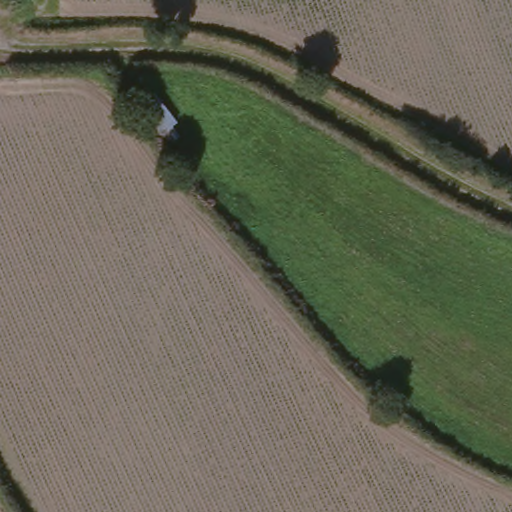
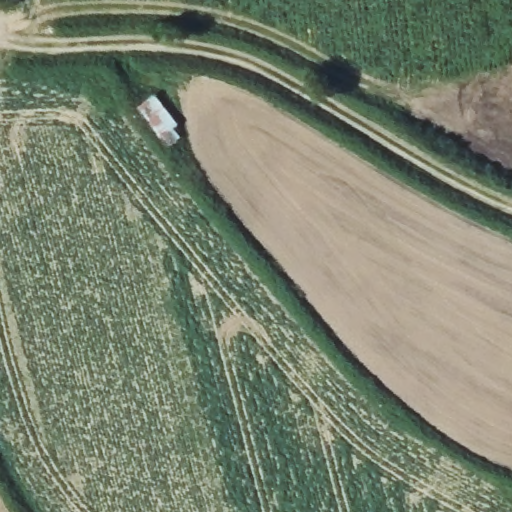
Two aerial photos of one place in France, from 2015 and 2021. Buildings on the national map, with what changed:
unchanged [(179,124),(175,128),(181,134),(163,150),(134,109),(156,92),(179,124)]

